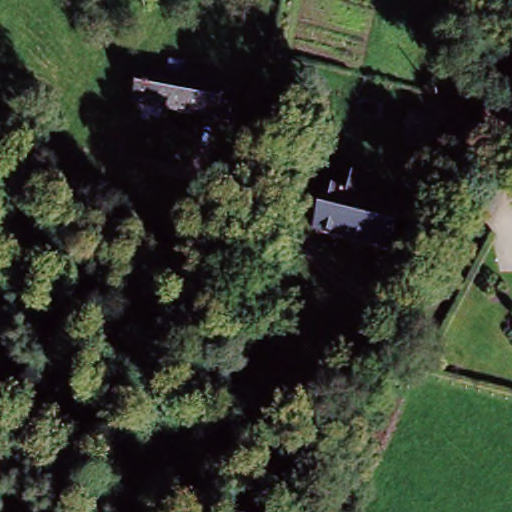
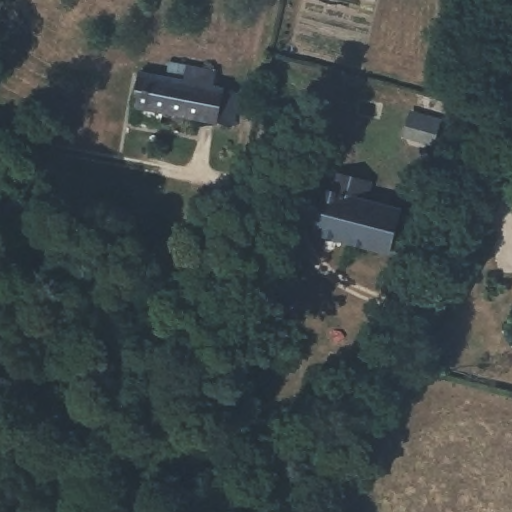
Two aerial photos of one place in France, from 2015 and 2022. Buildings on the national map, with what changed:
unchanged [(218,136),(197,131),(116,112),(123,86),(148,93),(155,66),(201,77),(198,96),(206,98),(226,104),(218,136)]
unchanged [(441,124),(436,145),(401,136),(405,115),(441,124)]
unchanged [(411,257),(390,251),(307,230),(320,170),(360,181),(357,203),(398,214),(420,219),(411,257)]

